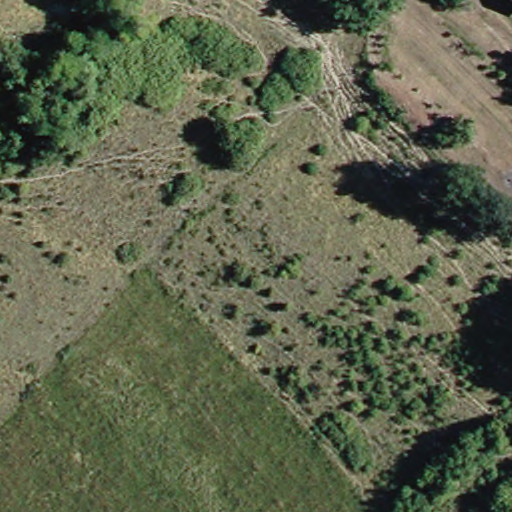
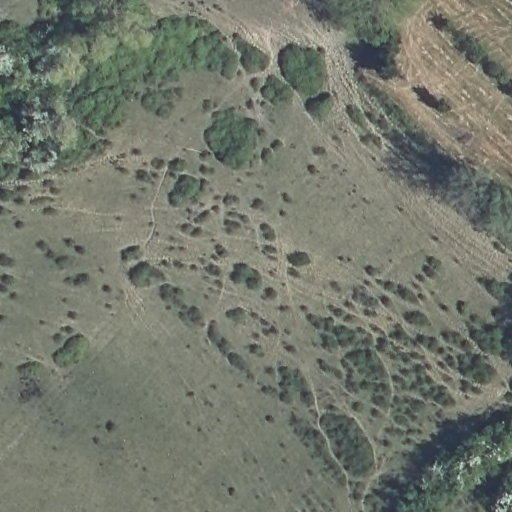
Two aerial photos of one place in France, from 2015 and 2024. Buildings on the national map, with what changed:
unchanged [(512,0),(512,2),(510,0),(512,0)]

